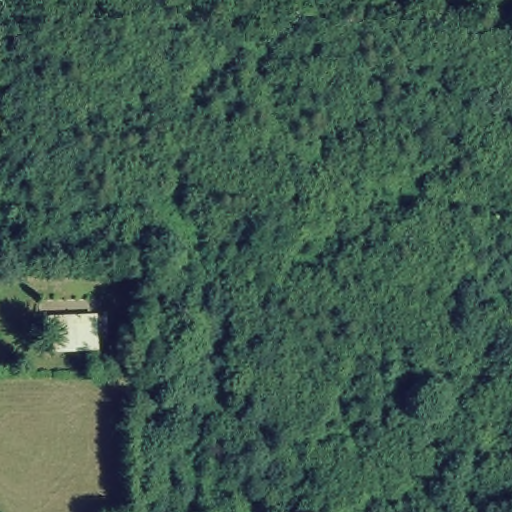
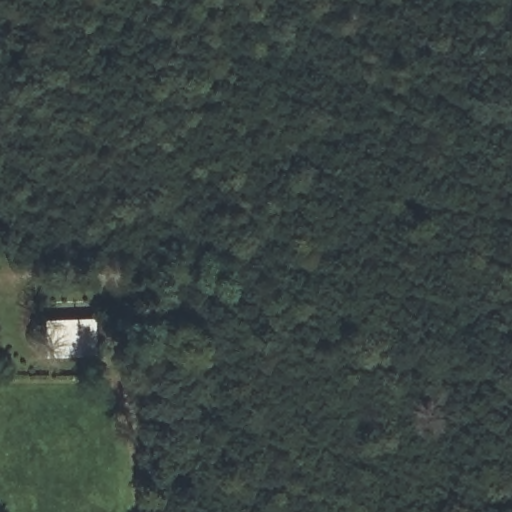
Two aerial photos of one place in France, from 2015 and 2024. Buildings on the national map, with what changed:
unchanged [(46,353),(48,313),(99,313),(100,352),(46,353)]

